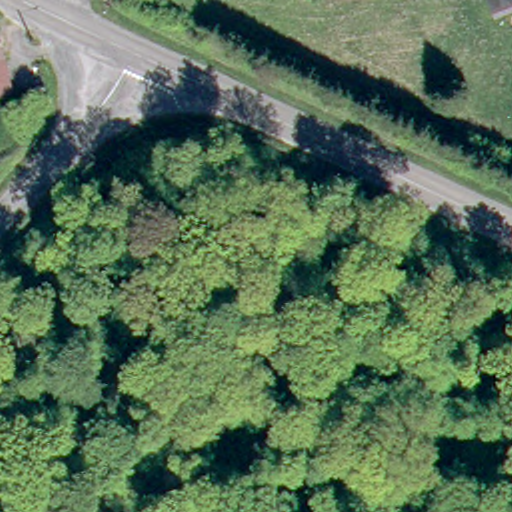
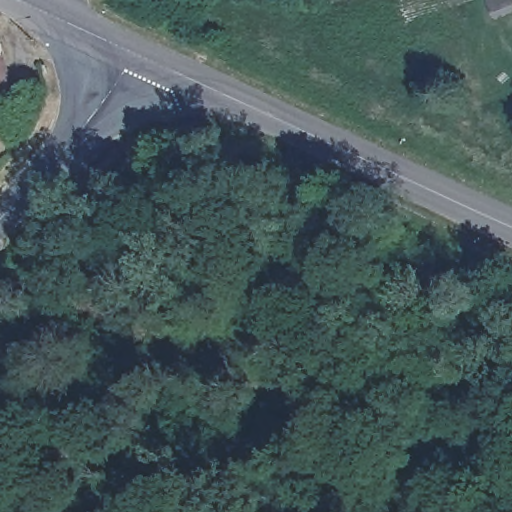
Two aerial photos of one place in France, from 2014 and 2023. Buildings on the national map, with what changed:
unchanged [(486,0),(512,0),(512,13),(494,19),(486,0)]
unchanged [(10,93),(0,95),(0,43),(10,93)]

